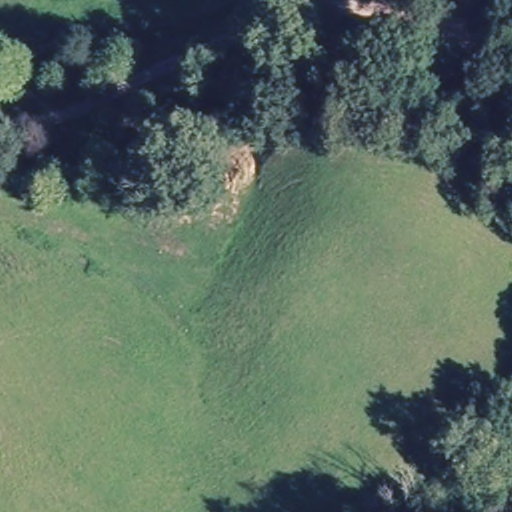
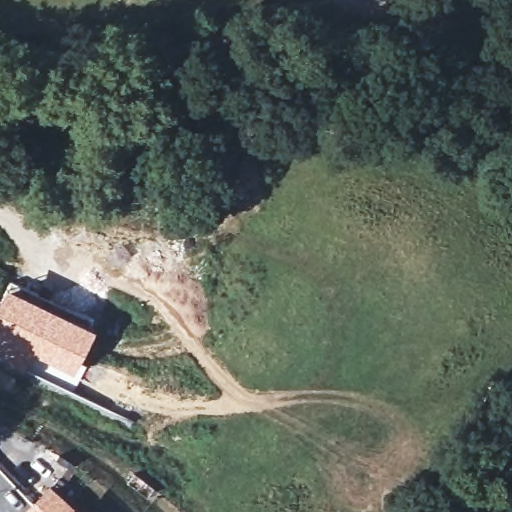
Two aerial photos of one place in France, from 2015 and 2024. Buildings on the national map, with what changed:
new [(95,329),(72,376),(62,371),(58,379),(26,370),(0,357),(0,297),(5,287),(95,329)]
new [(49,483),(80,512),(21,512),(49,483)]

